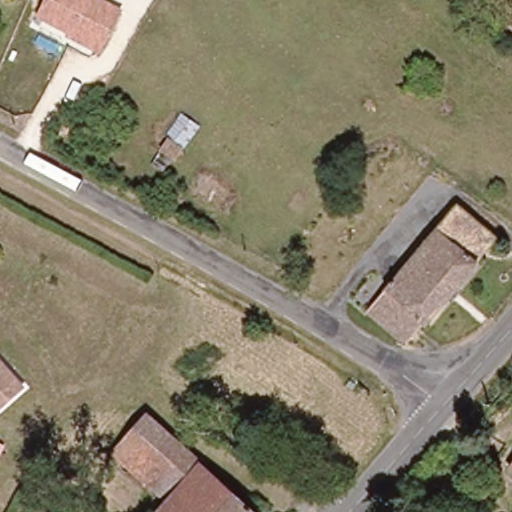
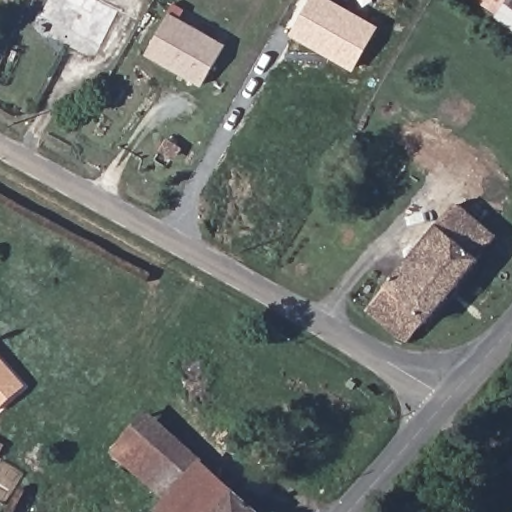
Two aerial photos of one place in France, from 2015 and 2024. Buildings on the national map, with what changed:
unchanged [(35,17),(44,0),(106,0),(122,8),(100,50),(35,17)]
new [(290,35),(309,0),(334,0),(379,26),(353,72),(290,35)]
unchanged [(497,11),(500,7),(502,4),(495,0),(512,0),(512,21),(497,11)]
new [(225,42),(200,86),(146,54),(170,11),(225,42)]
unchanged [(408,342),(365,307),(457,200),(500,236),(408,342)]
unchanged [(0,406),(0,354),(27,384),(0,406)]
unchanged [(151,478),(116,446),(152,408),(187,442),(151,478)]
unchanged [(161,508),(159,507),(169,495),(151,478),(187,442),(262,512),(157,512),(161,508)]
unchanged [(507,463),(512,458),(512,468),(507,463)]

